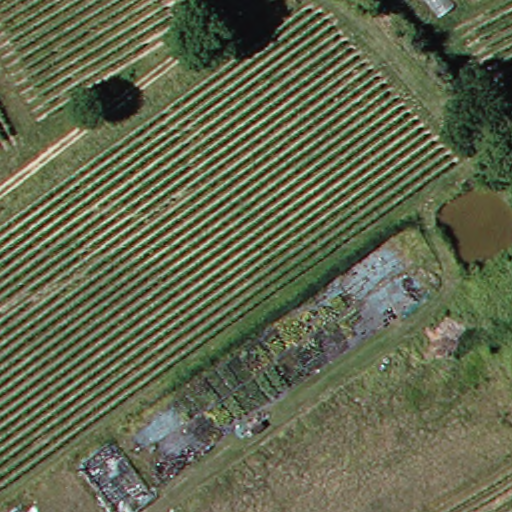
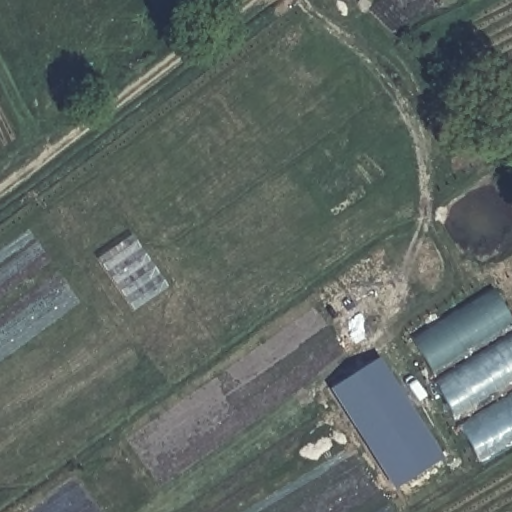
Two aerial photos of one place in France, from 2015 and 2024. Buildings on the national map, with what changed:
new [(434,375),(414,338),(493,290),(512,322),(512,328),(434,375)]
new [(460,419),(438,383),(512,338),(512,386),(460,419)]
new [(394,491),(328,390),(378,357),(442,459),(394,491)]
new [(512,397),(512,443),(483,461),(463,428),(512,397)]
demolished [(156,499),(137,512),(115,512),(81,464),(116,440),(156,499)]

